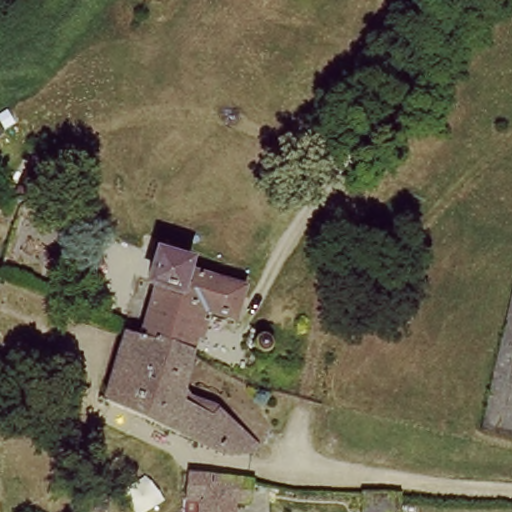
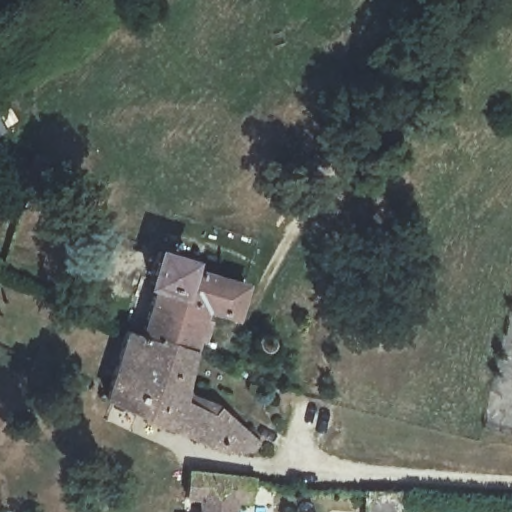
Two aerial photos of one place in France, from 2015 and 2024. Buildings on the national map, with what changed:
unchanged [(157,246),(185,255),(183,264),(197,268),(187,301),(151,291),(154,281),(147,279),(157,246)]
unchanged [(187,301),(197,268),(245,280),(237,312),(207,304),(203,317),(209,319),(205,334),(200,332),(195,351),(138,333),(151,291),(187,301)]
unchanged [(273,327),(275,327),(277,329),(278,330),(280,332),(281,334),(282,336),(282,338),(282,340),(282,342),(282,344),(280,346),(280,348),(278,350),(276,351),(275,352),(272,353),(270,353),(268,353),(266,353),(264,353),(262,352),(260,351),(258,349),(257,347),(256,346),(255,345),(255,343),(255,341),(255,338),(255,336),(255,334),(257,332),(258,331),(260,329),(262,328),(263,327),(265,326),(269,326),(273,327)]
unchanged [(185,388),(217,401),(262,441),(255,451),(228,449),(220,448),(107,394),(125,328),(130,330),(138,333),(195,351),(185,388)]
unchanged [(29,358),(35,342),(49,349),(42,364),(29,358)]
unchanged [(193,476),(250,488),(250,490),(250,506),(250,507),(241,506),(241,512),(191,512),(193,476)]
unchanged [(398,497),(398,512),(361,512),(362,496),(398,497)]

